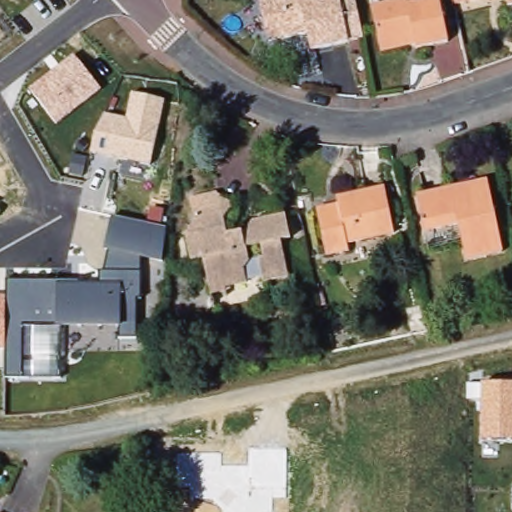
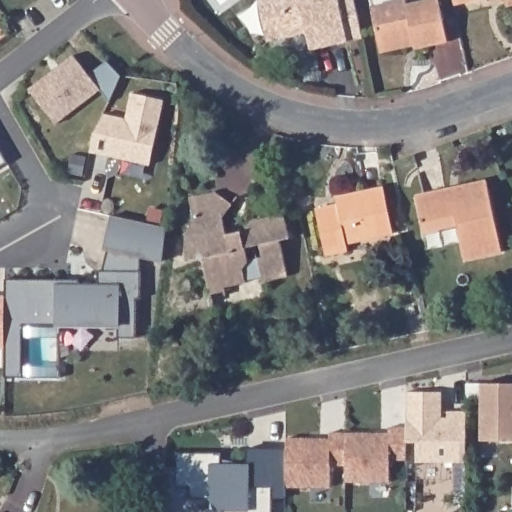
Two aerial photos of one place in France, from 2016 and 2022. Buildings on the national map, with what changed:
unchanged [(268,41),(259,0),(340,0),(349,41),(311,50),(309,40),(279,46),(278,39),(268,41)]
unchanged [(372,7),(404,0),(407,0),(408,5),(432,0),(439,0),(448,41),(416,48),(415,45),(381,52),(380,45),(372,7)]
unchanged [(454,0),(501,0),(492,2),(456,10),(454,0)]
unchanged [(506,0),(512,0),(512,10),(509,11),(506,0)]
unchanged [(31,89),(76,55),(102,89),(57,124),(31,89)]
unchanged [(95,134),(106,115),(127,119),(132,93),(165,101),(152,165),(92,154),(95,134)]
new [(6,161),(0,165),(0,152),(6,161)]
unchanged [(501,252),(464,260),(457,226),(423,233),(415,197),(486,181),(501,252)]
unchanged [(392,234),(346,244),(347,251),(325,256),(315,211),(339,206),(337,199),(342,198),(383,189),(392,234)]
unchanged [(209,294),(205,274),(202,258),(190,261),(184,236),(194,222),(192,216),(189,198),(215,192),(230,205),(228,208),(222,218),(226,235),(245,231),(252,222),(284,215),(290,239),(280,241),(288,277),(263,282),(262,277),(246,280),(246,282),(223,287),(224,291),(209,294)]
unchanged [(6,296),(6,281),(78,281),(78,285),(99,285),(99,271),(104,271),(110,251),(108,251),(106,250),(113,217),(166,229),(161,261),(140,256),(141,300),(136,300),(136,338),(119,339),(119,327),(61,328),(61,379),(24,379),(5,378),(5,349),(0,349),(0,296),(6,296)]
unchanged [(468,399),(468,383),(483,383),(512,383),(512,440),(481,439),(482,400),(468,399)]
new [(418,462),(419,443),(409,443),(409,428),(409,392),(444,392),(444,419),(450,419),(450,412),(469,413),(469,463),(468,493),(456,493),(457,463),(418,462)]
new [(348,466),(349,433),(391,434),(391,428),(409,428),(409,443),(408,460),(393,460),(393,483),(348,482),(348,466)]
new [(288,449),(288,439),(332,439),(332,433),(349,433),(348,466),(333,466),(333,488),(288,488),(288,449)]
new [(274,498),(274,512),(225,512),(225,511),(213,499),(191,499),(192,488),(178,488),(178,453),(223,453),(223,466),(250,466),(250,448),(288,449),(288,488),(288,489),(288,498),(274,498)]

